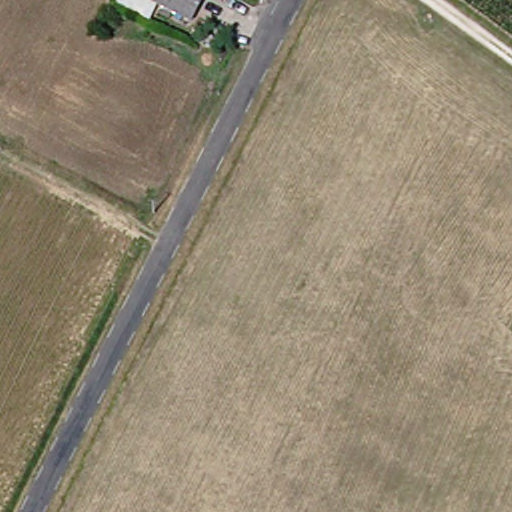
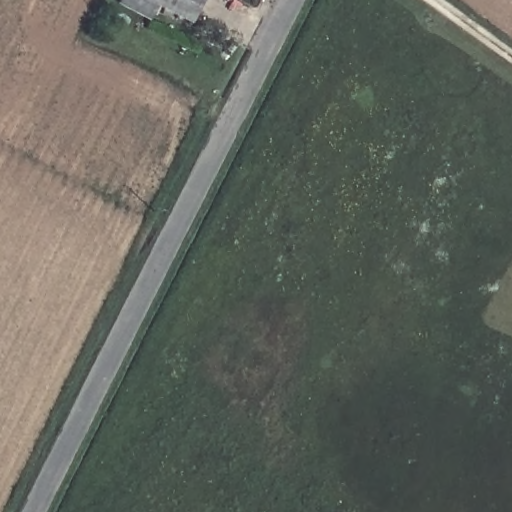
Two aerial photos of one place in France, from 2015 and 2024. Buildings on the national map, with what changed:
unchanged [(136,0),(198,0),(185,26),(136,0)]

